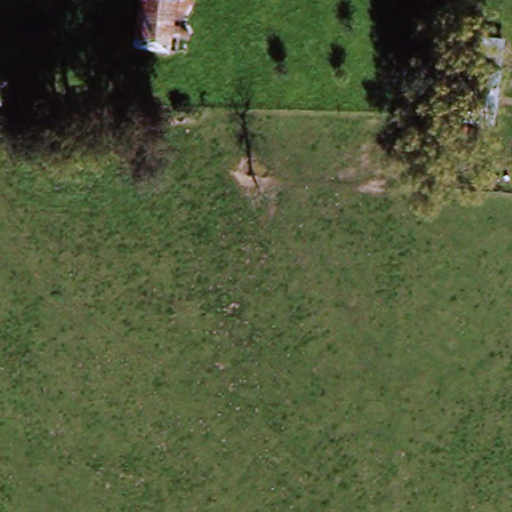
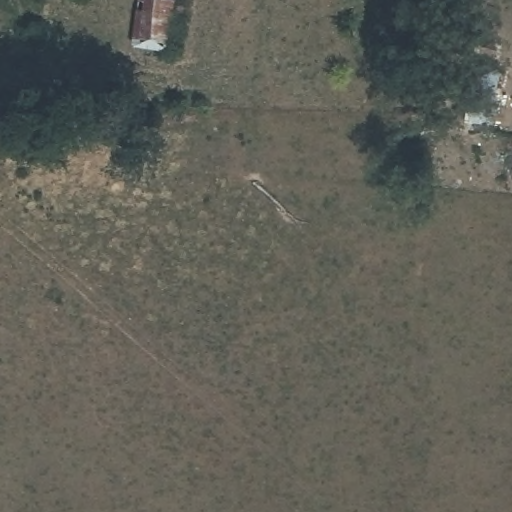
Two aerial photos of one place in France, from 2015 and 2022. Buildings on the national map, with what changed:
unchanged [(139,0),(175,0),(170,55),(134,52),(139,0)]
unchanged [(497,127),(481,125),(481,117),(473,114),(476,69),(487,70),(488,63),(501,64),(497,127)]

